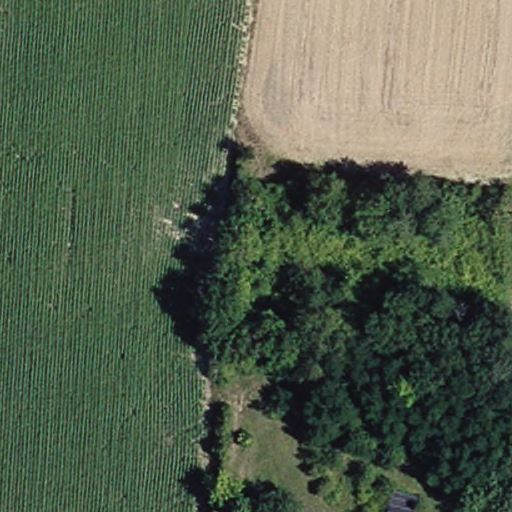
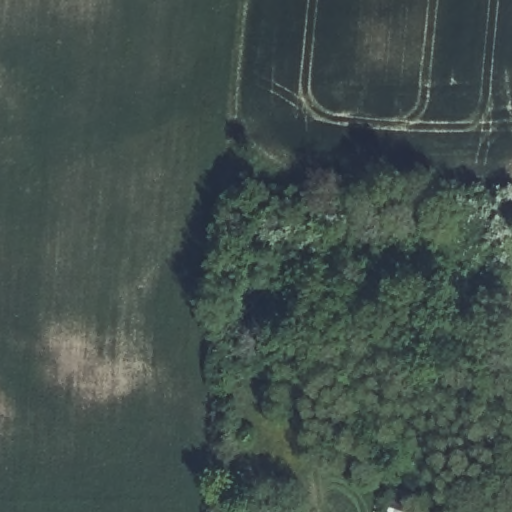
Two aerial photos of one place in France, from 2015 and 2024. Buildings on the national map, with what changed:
[]

